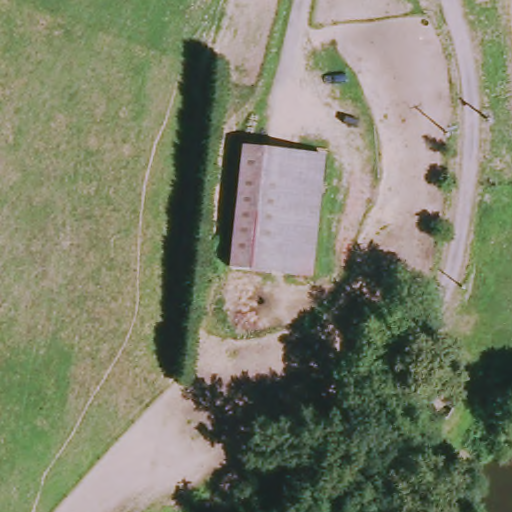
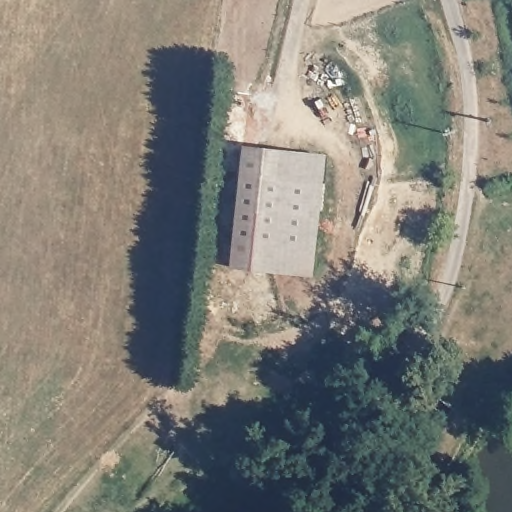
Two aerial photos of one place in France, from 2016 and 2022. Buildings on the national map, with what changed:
unchanged [(231,273),(245,151),(263,153),(248,274),(231,273)]
unchanged [(263,153),(326,160),(314,281),(248,274),(263,153)]

